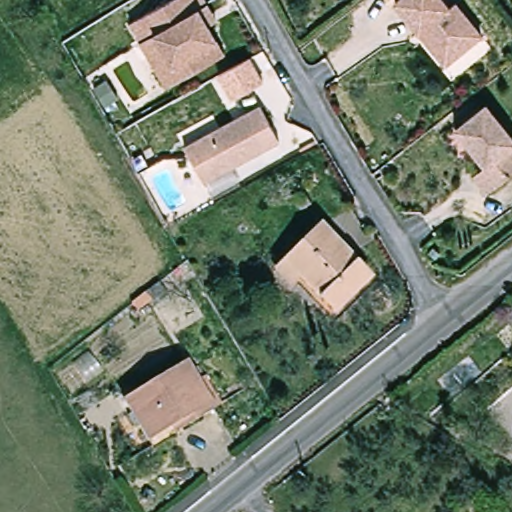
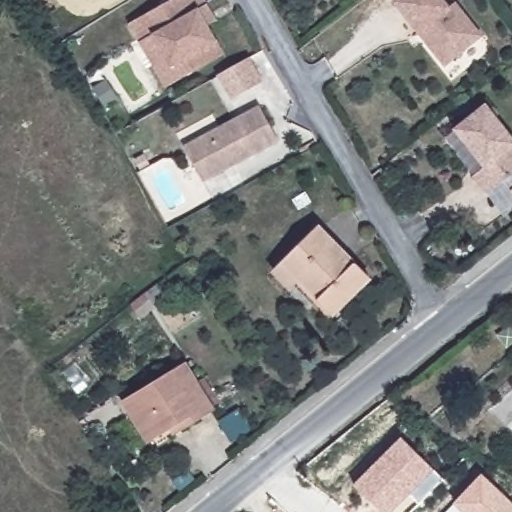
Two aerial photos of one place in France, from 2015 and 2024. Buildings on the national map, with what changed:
unchanged [(128,22),(165,0),(204,0),(205,2),(214,17),(206,22),(224,51),(179,78),(166,86),(140,42),(128,22)]
unchanged [(394,4),(398,0),(443,0),(450,9),(456,4),(482,37),(452,61),(445,67),(418,34),(394,4)]
unchanged [(247,55),(261,80),(231,97),(216,74),(247,55)]
unchanged [(89,90),(102,82),(113,100),(99,107),(89,90)]
unchanged [(188,146),(264,104),(283,140),(207,182),(188,146)]
unchanged [(475,174),(487,165),(460,130),(490,106),(512,134),(512,171),(488,191),(475,174)]
new [(507,187),(512,183),(512,194),(507,187)]
unchanged [(373,280),(336,316),(285,262),(322,227),(373,280)]
unchanged [(165,297),(152,308),(142,295),(155,285),(165,297)]
unchanged [(216,410),(177,433),(174,428),(151,442),(127,401),(188,364),(216,410)]
new [(402,437),(434,470),(444,480),(419,504),(409,496),(392,512),(382,512),(354,484),(402,437)]
new [(512,502),(512,512),(462,512),(454,504),(482,473),(512,502)]

